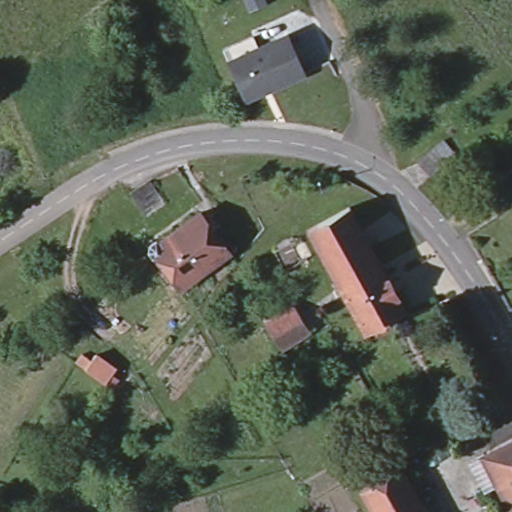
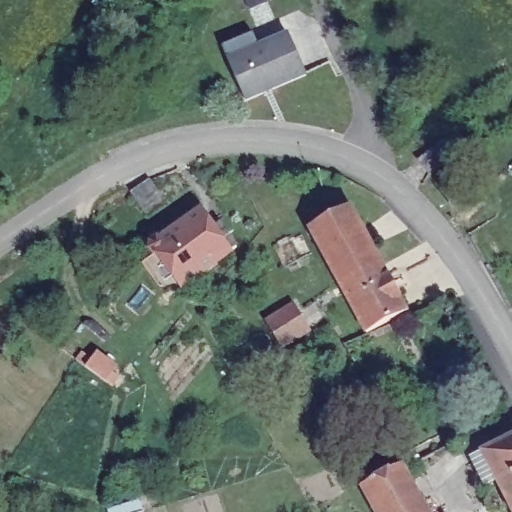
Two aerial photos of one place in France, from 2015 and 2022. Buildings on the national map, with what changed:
unchanged [(306,74),(246,99),(229,60),(289,34),(306,74)]
unchanged [(456,154),(431,174),(419,160),(444,139),(456,154)]
unchanged [(151,179),(167,204),(148,216),(132,192),(151,179)]
unchanged [(311,228),(351,207),(382,265),(342,287),(311,228)]
unchanged [(201,211),(213,228),(219,223),(237,247),(231,252),(183,287),(153,246),(161,240),(201,211)]
unchanged [(382,265),(407,312),(367,333),(342,287),(382,265)]
unchanged [(295,305),(311,329),(283,348),(267,324),(295,305)]
unchanged [(83,352),(92,359),(97,353),(112,364),(109,369),(119,376),(112,386),(86,367),(77,361),(83,352)]
unchanged [(493,481),(479,452),(488,448),(512,436),(512,497),(502,477),(493,481)]
unchanged [(401,461),(430,512),(379,512),(362,483),(401,461)]

